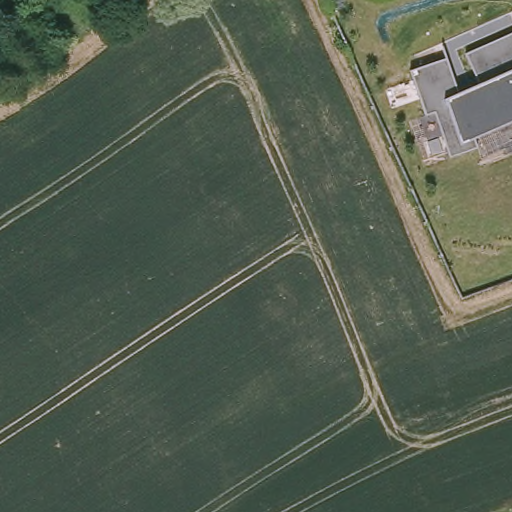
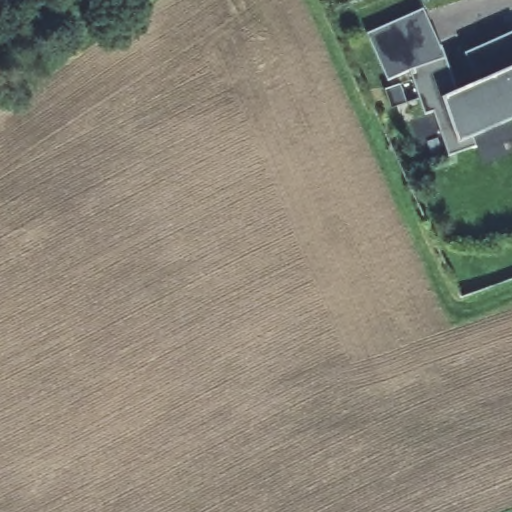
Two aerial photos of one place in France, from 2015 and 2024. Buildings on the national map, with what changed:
new [(389,80),(367,34),(423,10),(445,58),(410,71),(389,80)]
unchanged [(473,138),(477,147),(450,156),(435,111),(425,114),(410,71),(445,58),(457,93),(478,84),(465,54),(512,32),(512,121),(473,138)]

